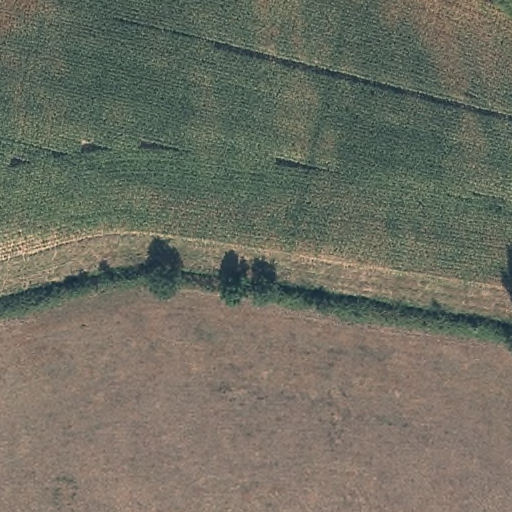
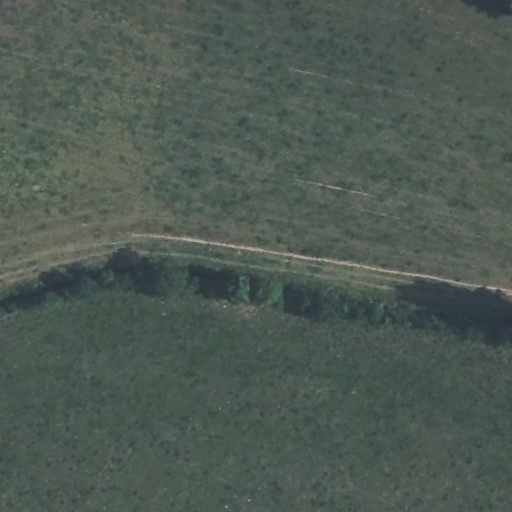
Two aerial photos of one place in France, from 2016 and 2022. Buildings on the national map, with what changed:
[]

